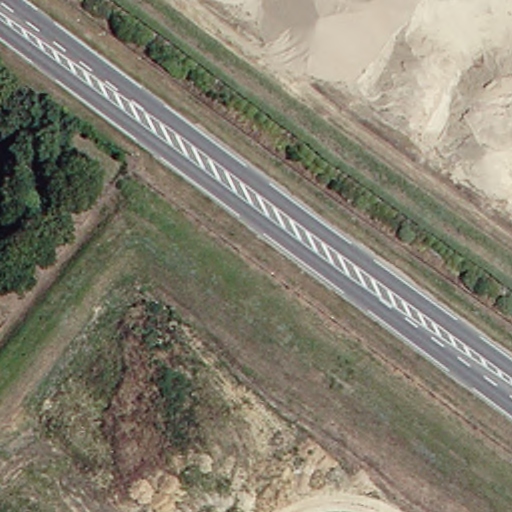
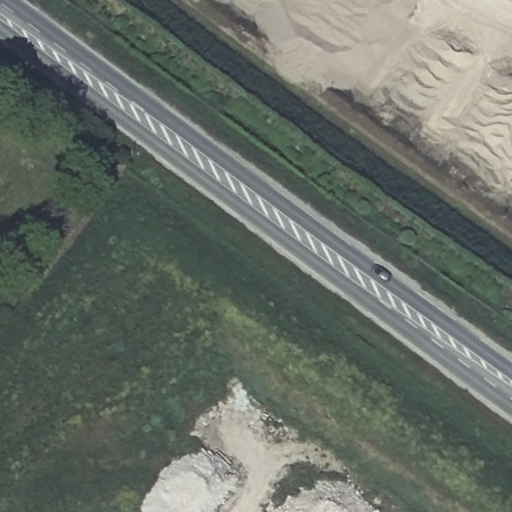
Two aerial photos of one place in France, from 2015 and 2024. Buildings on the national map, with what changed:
[]

